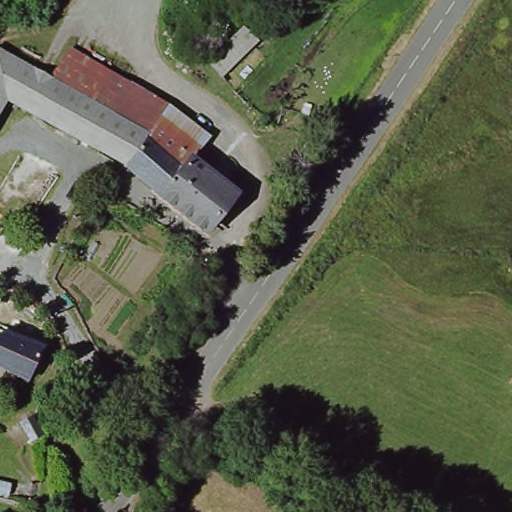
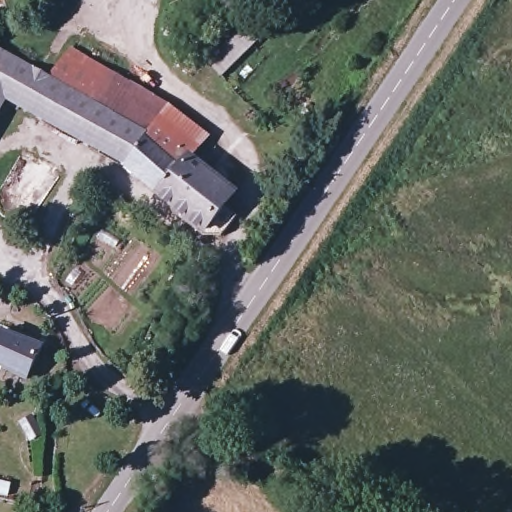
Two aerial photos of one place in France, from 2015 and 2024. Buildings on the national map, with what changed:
unchanged [(258,43),(221,80),(206,64),(242,26),(258,43)]
unchanged [(38,116),(0,96),(0,50),(36,71),(58,43),(78,54),(38,116)]
unchanged [(80,139),(38,116),(78,54),(118,76),(80,139)]
unchanged [(118,158),(118,160),(80,139),(118,76),(158,98),(118,158)]
unchanged [(178,156),(155,190),(118,160),(118,158),(158,98),(161,100),(201,126),(178,156)]
unchanged [(218,199),(199,224),(183,211),(155,190),(178,156),(183,161),(178,171),(218,199)]
unchanged [(25,334),(35,338),(23,373),(0,364),(0,324),(0,325),(9,328),(18,331),(25,334)]

